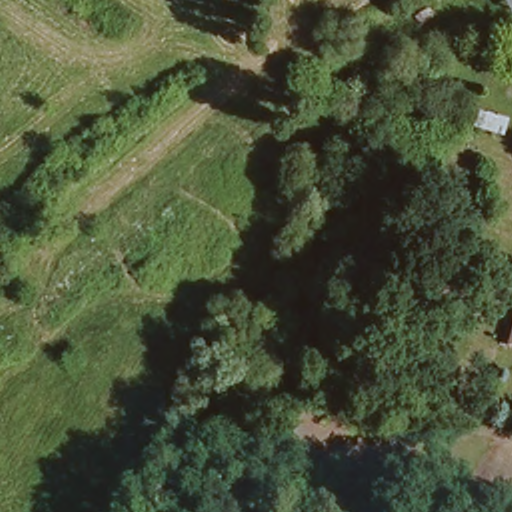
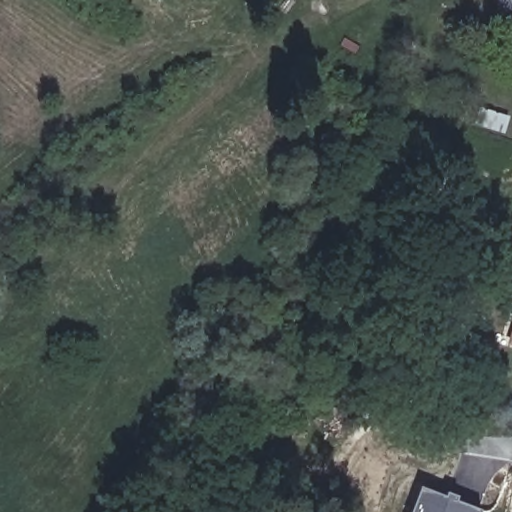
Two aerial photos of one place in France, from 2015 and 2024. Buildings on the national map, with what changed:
unchanged [(510,0),(512,0),(512,4),(510,0)]
unchanged [(506,131),(500,147),(467,136),(474,121),(506,131)]
unchanged [(506,343),(512,322),(512,345),(506,343)]
new [(409,512),(419,486),(443,495),(444,491),(457,496),(455,500),(480,510),(480,512),(409,512)]

